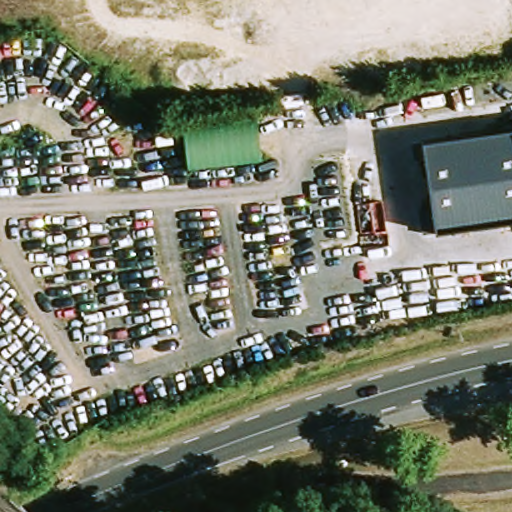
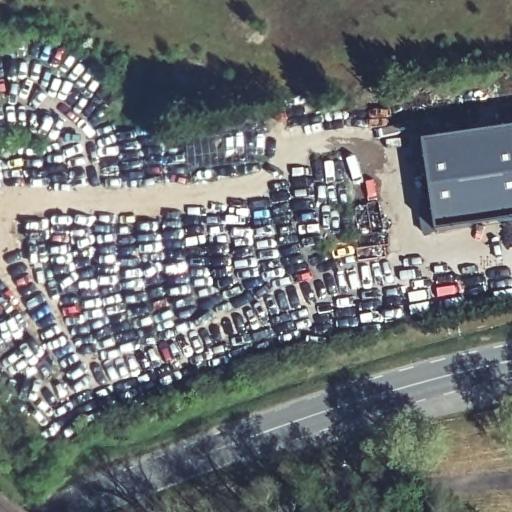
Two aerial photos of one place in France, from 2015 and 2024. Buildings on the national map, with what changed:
unchanged [(0,95),(1,104),(0,104),(0,95)]
new [(187,133),(259,125),(262,163),(189,171),(187,133)]
unchanged [(512,127),(512,218),(439,228),(427,139),(512,127)]

